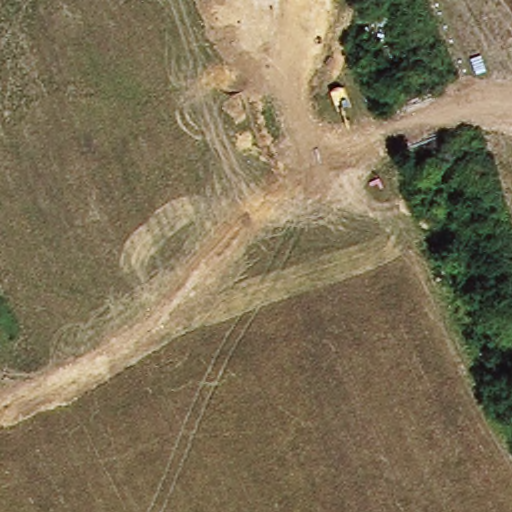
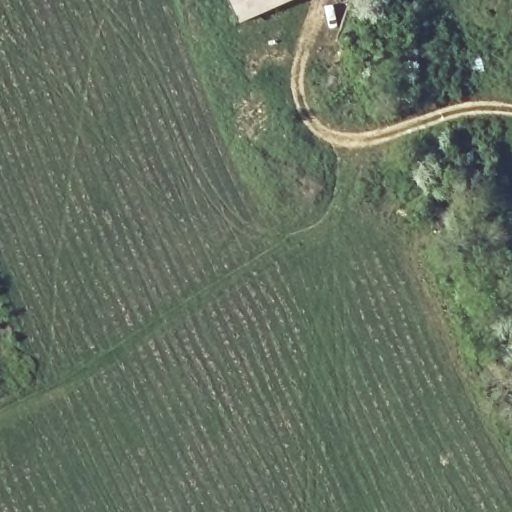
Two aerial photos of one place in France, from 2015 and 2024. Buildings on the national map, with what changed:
new [(239,26),(228,0),(295,0),(239,26)]

